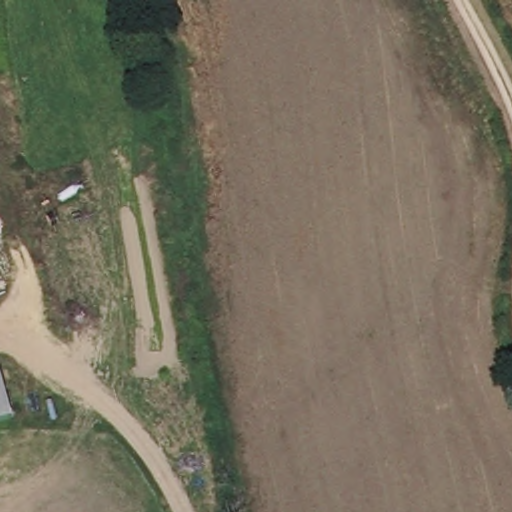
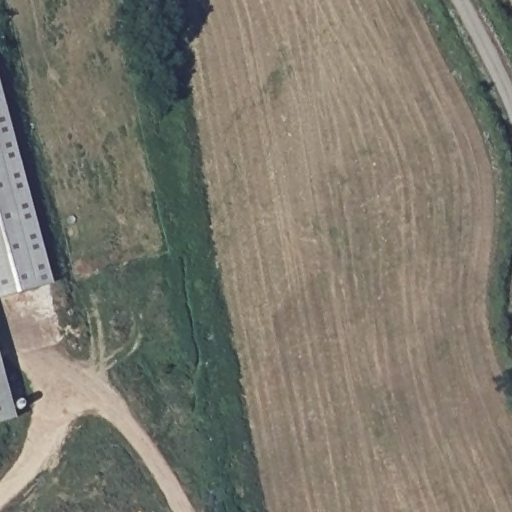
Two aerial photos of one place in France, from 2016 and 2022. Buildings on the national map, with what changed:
new [(0,102),(49,284),(0,297),(0,102)]
unchanged [(0,361),(17,424),(0,428),(0,361)]

